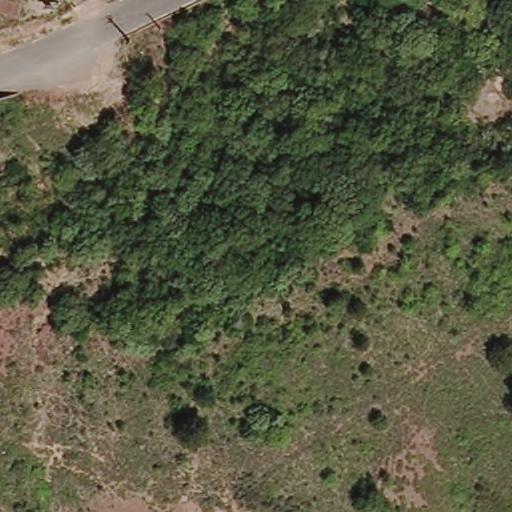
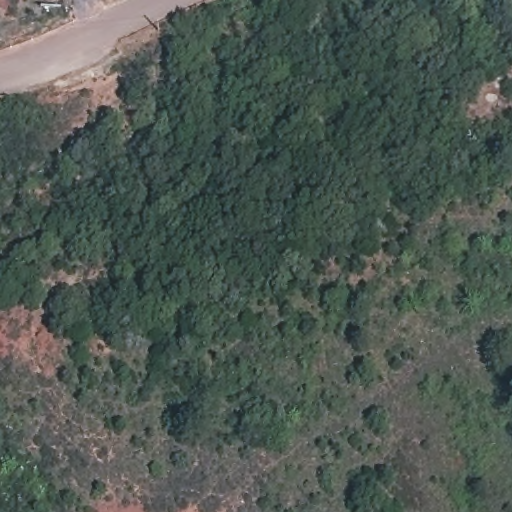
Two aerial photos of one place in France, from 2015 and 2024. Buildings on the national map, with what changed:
unchanged [(0,14),(0,1),(0,0),(24,0),(18,19),(0,14)]

